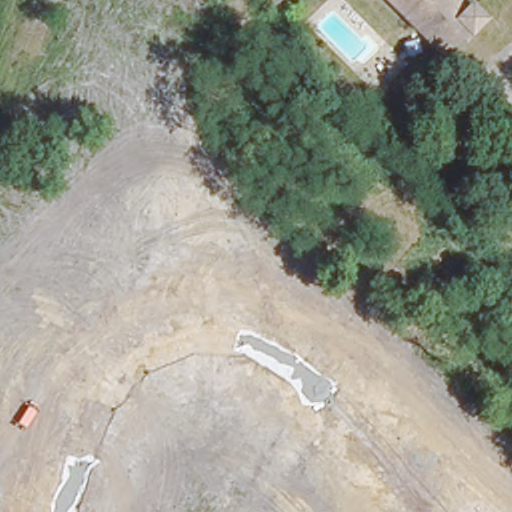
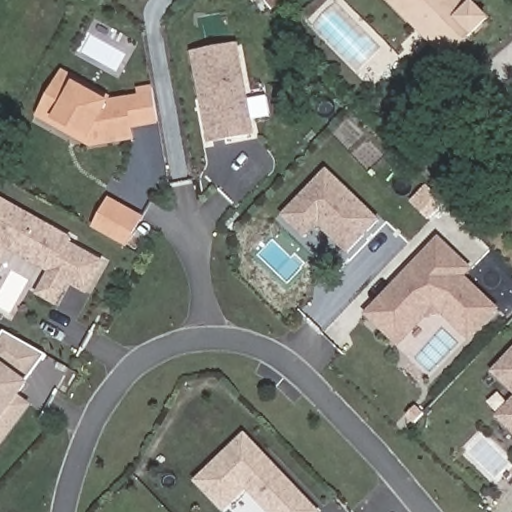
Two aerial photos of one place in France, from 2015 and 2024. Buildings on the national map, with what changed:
new [(271,10),(262,0),(284,0),(271,10)]
unchanged [(487,11),(449,52),(394,0),(463,0),(468,5),(472,0),(477,0),(488,10),(487,11)]
new [(209,144),(192,52),(238,44),(255,136),(209,144)]
new [(133,128),(134,140),(90,149),(35,119),(61,70),(75,82),(107,100),(153,92),(159,125),(133,128)]
new [(347,255),(319,227),(306,240),(281,216),(327,167),(380,220),(347,255)]
new [(72,237),(70,241),(104,262),(87,293),(70,283),(57,307),(35,294),(47,272),(6,249),(0,259),(0,197),(72,237)]
new [(127,249),(93,229),(109,199),(143,217),(127,249)]
new [(465,277),(499,310),(468,341),(444,316),(427,318),(399,347),(363,314),(438,236),(473,270),(465,277)]
new [(4,332),(45,355),(23,386),(0,417),(0,337),(4,332)]
new [(512,351),(512,392),(493,372),(512,351)]
new [(512,399),(512,432),(496,415),(512,399)]
new [(223,512),(193,481),(244,432),(320,512),(266,512),(246,490),(223,512)]

